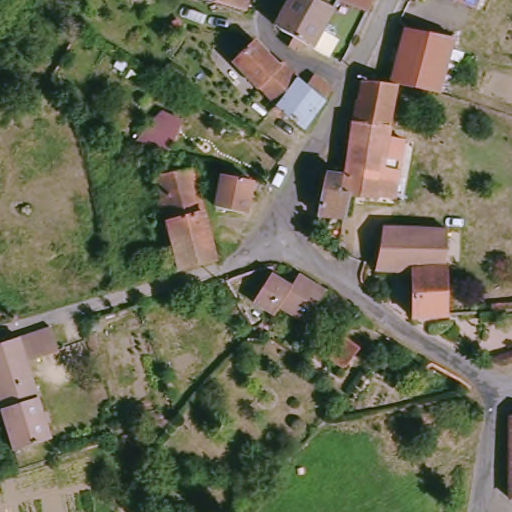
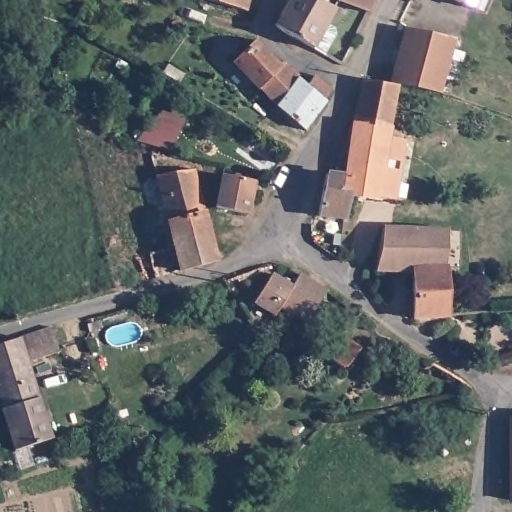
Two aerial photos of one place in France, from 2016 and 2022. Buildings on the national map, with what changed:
unchanged [(215,2),(205,0),(249,0),(246,11),(215,2)]
unchanged [(290,47),(295,39),(285,34),(275,25),(289,0),(317,0),(332,7),(335,9),(327,25),(335,28),(337,34),(325,56),(314,50),(304,44),(299,52),(290,47)]
unchanged [(332,7),(317,0),(374,0),(369,12),(335,2),(332,7)]
unchanged [(455,0),(474,0),(471,7),(465,5),(455,0)]
unchanged [(439,90),(393,86),(395,72),(406,33),(456,38),(439,90)]
unchanged [(285,63),(292,61),(314,85),(324,75),(339,90),(310,130),(279,106),(240,59),(260,39),(285,63)]
unchanged [(395,89),(390,131),(387,151),(352,148),(354,125),(355,125),(365,86),(392,89),(395,89)]
unchanged [(157,116),(189,121),(175,147),(144,142),(157,116)]
unchanged [(317,222),(327,180),(344,181),(342,198),(345,199),(347,181),(352,148),(387,151),(384,172),(399,174),(395,204),(355,200),(349,199),(344,222),(317,222)]
unchanged [(217,260),(182,270),(175,245),(168,219),(157,174),(193,166),(212,236),(217,259),(217,260)]
unchanged [(217,209),(224,177),(230,178),(254,183),(247,215),(217,209)]
unchanged [(383,227),(415,227),(447,229),(445,267),(448,266),(450,316),(416,318),(412,273),(376,271),(383,227)]
unchanged [(304,323),(280,310),(277,314),(273,312),(255,301),(272,272),(292,282),(297,275),(325,290),(304,323)]
unchanged [(29,361),(55,437),(17,449),(0,398),(0,344),(52,327),(60,350),(29,361)]
unchanged [(344,367),(326,354),(336,340),(341,332),(365,350),(344,367)]
unchanged [(509,438),(510,417),(512,416),(512,492),(509,438)]
unchanged [(420,432),(422,434),(424,436),(424,439),(422,441),(420,442),(417,443),(415,441),(413,440),(414,436),(415,434),(417,433),(420,432)]
unchanged [(0,468),(0,443),(7,466),(0,468)]

